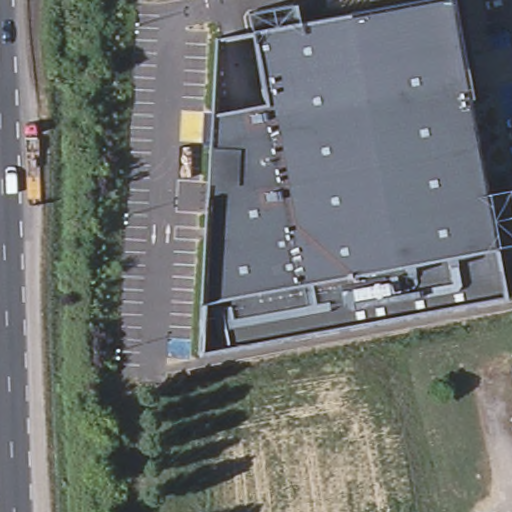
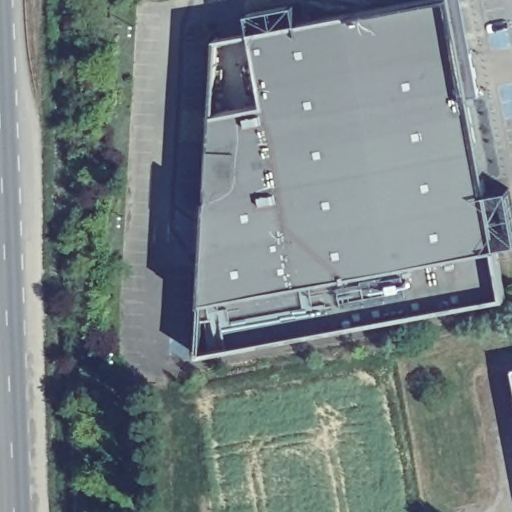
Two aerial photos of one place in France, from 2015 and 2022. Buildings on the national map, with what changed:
unchanged [(512,243),(495,246),(504,299),(202,352),(201,303),(213,115),(265,104),(250,12),(294,4),(297,24),(422,0),(452,0),(485,193),(510,189),(512,197),(512,243)]

